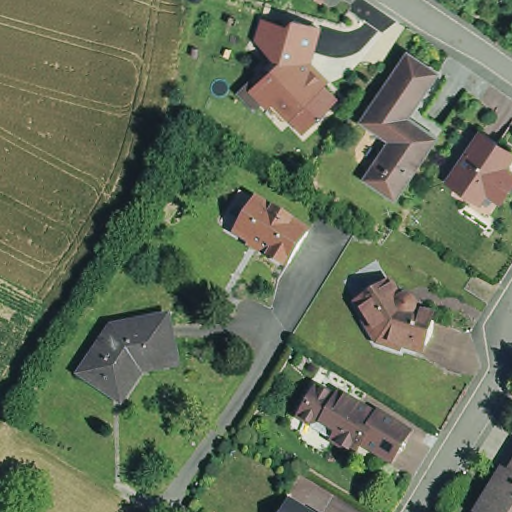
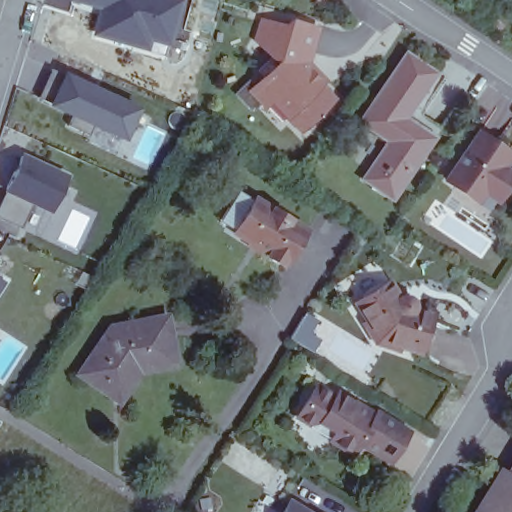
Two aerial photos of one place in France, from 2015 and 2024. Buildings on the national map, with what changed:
new [(173,49),(153,42),(148,55),(93,39),(101,12),(71,2),(72,0),(186,0),(173,49)]
unchanged [(320,5),(312,0),(323,0),(320,5)]
unchanged [(306,57),(300,64),(321,86),(315,91),(328,105),(317,116),(321,120),(312,127),(309,124),(301,132),(300,131),(298,134),(285,120),(279,125),(265,110),(263,111),(247,94),(260,81),(254,75),(267,61),(259,52),(265,47),(253,35),(257,24),(281,31),(288,25),(312,30),(306,57)]
unchanged [(358,184),(383,146),(355,126),(402,56),(432,77),(401,123),(430,142),(389,205),(358,184)]
new [(143,111),(129,145),(50,110),(63,75),(143,111)]
unchanged [(447,185),(480,137),(507,155),(500,165),(502,170),(512,178),(512,186),(500,203),(487,194),(485,197),(478,206),(471,201),(447,185)]
new [(72,175),(54,215),(34,206),(24,227),(0,216),(0,210),(25,155),(72,175)]
unchanged [(274,202),(291,213),(289,216),(307,227),(288,258),(285,256),(278,258),(272,254),(270,247),(235,225),(220,216),(239,185),(253,194),(272,205),(274,202)]
new [(0,296),(0,280),(7,285),(0,296)]
unchanged [(415,357),(395,350),(393,354),(372,347),(360,328),(363,326),(352,307),(385,286),(395,303),(398,301),(402,302),(405,303),(408,306),(410,310),(409,313),(427,320),(415,357)]
unchanged [(75,373),(107,326),(162,316),(172,364),(136,371),(115,401),(75,373)]
unchanged [(312,396),(330,407),(333,402),(370,425),(372,422),(404,441),(385,471),(355,452),(348,463),(325,449),(330,440),(317,431),(306,434),(293,426),(312,396)]
unchanged [(492,485),(502,468),(509,472),(512,468),(512,512),(485,512),(499,489),(492,485)]
unchanged [(278,512),(285,501),(303,512),(278,512)]

